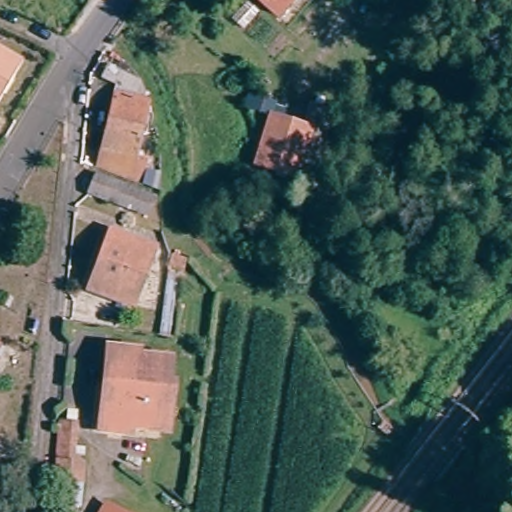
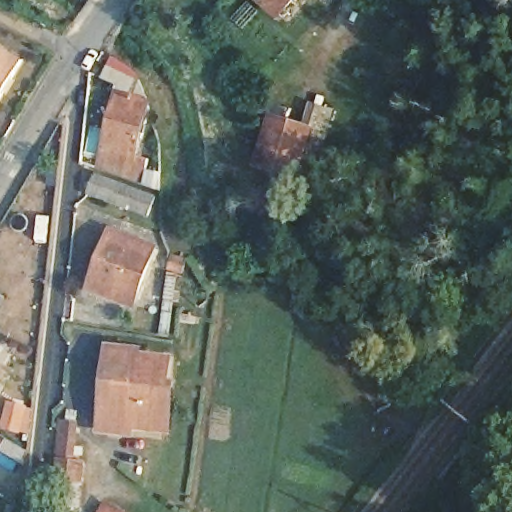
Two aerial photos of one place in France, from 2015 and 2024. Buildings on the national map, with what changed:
unchanged [(241,0),(283,0),(264,22),(241,0)]
unchanged [(0,104),(0,103),(0,40),(28,57),(0,104)]
unchanged [(118,99),(119,86),(101,77),(108,64),(142,81),(145,97),(151,100),(149,109),(118,99)]
unchanged [(149,159),(141,187),(134,184),(98,172),(118,99),(149,109),(138,157),(149,159)]
unchanged [(304,181),(290,178),(252,168),(267,117),(306,127),(300,146),(314,148),(304,181)]
unchanged [(91,199),(99,180),(156,201),(149,220),(91,199)]
unchanged [(93,290),(114,236),(158,252),(137,307),(93,290)]
unchanged [(177,271),(181,260),(195,265),(192,277),(177,271)]
unchanged [(170,280),(180,282),(169,337),(168,337),(159,336),(170,280)]
unchanged [(0,349),(0,343),(3,345),(0,349)]
unchanged [(168,386),(161,432),(159,432),(146,430),(124,427),(124,432),(98,428),(101,405),(104,381),(109,348),(135,352),(134,358),(166,363),(163,385),(165,386),(168,386)]
new [(35,407),(30,435),(0,429),(0,424),(5,399),(35,407)]
unchanged [(73,468),(86,470),(84,489),(54,485),(60,430),(68,431),(78,431),(76,437),(73,468)]
new [(0,438),(0,433),(2,435),(0,438)]
unchanged [(0,486),(0,463),(10,469),(0,486)]
unchanged [(123,512),(100,512),(105,502),(123,512)]

